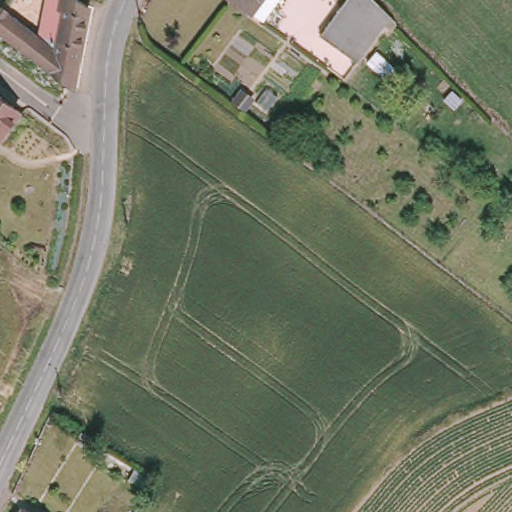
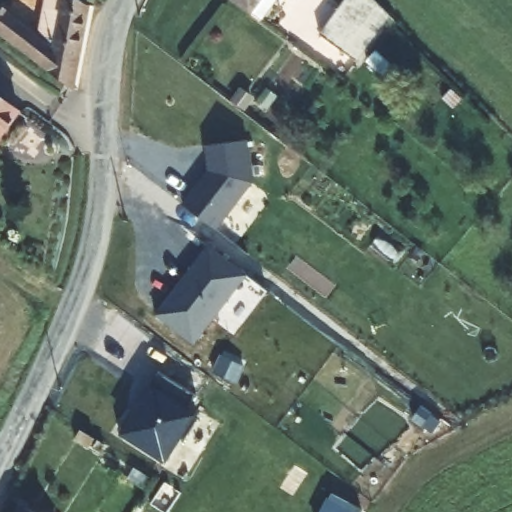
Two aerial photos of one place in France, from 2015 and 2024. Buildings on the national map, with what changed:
new [(36,37),(44,0),(65,0),(55,50),(36,37)]
unchanged [(55,50),(65,0),(78,0),(89,9),(78,62),(55,50)]
unchanged [(241,7),(234,0),(270,0),(252,17),(241,7)]
unchanged [(323,41),(362,0),(376,0),(390,13),(343,60),(323,41)]
unchanged [(16,47),(0,35),(0,10),(28,31),(16,47)]
unchanged [(78,62),(72,89),(16,47),(28,31),(55,50),(78,62)]
unchanged [(0,101),(16,113),(0,136),(0,101)]
new [(180,212),(201,185),(203,187),(207,182),(203,152),(243,147),(248,190),(212,237),(180,212)]
new [(207,246),(247,274),(195,343),(155,315),(207,246)]
new [(162,372),(196,394),(187,408),(197,415),(186,435),(162,462),(123,433),(152,387),(162,372)]
unchanged [(30,507),(39,512),(27,512),(30,507)]

